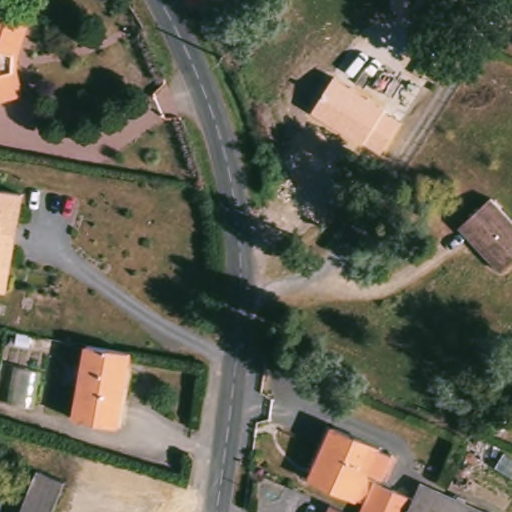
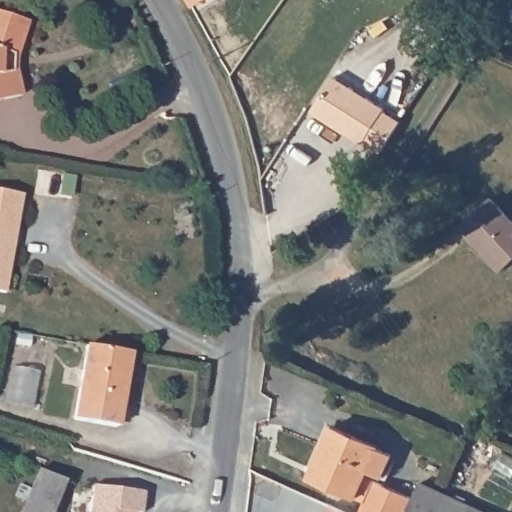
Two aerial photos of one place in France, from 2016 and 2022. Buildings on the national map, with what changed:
unchanged [(184,0),(198,0),(188,7),(184,0)]
unchanged [(17,60),(21,95),(0,100),(0,14),(28,24),(17,60)]
unchanged [(381,154),(363,144),(312,114),(334,77),(384,110),(401,122),(381,154)]
unchanged [(0,292),(0,190),(21,195),(4,292),(0,292)]
unchanged [(491,200),(512,222),(512,260),(497,273),(459,227),(491,200)]
unchanged [(129,352),(119,425),(72,417),(84,345),(129,352)]
unchanged [(329,425),(392,454),(383,477),(369,471),(366,478),(413,498),(419,483),(470,505),(467,512),(358,512),(362,502),(306,478),(329,425)]
unchanged [(51,512),(20,512),(26,499),(14,495),(19,481),(32,485),(39,467),(65,477),(51,512)]
new [(145,491),(143,512),(90,512),(93,486),(145,491)]
demolished [(146,502),(142,512),(92,512),(103,486),(146,502)]
unchanged [(470,505),(484,512),(467,512),(470,505)]
unchanged [(327,507),(341,512),(325,512),(327,507)]

